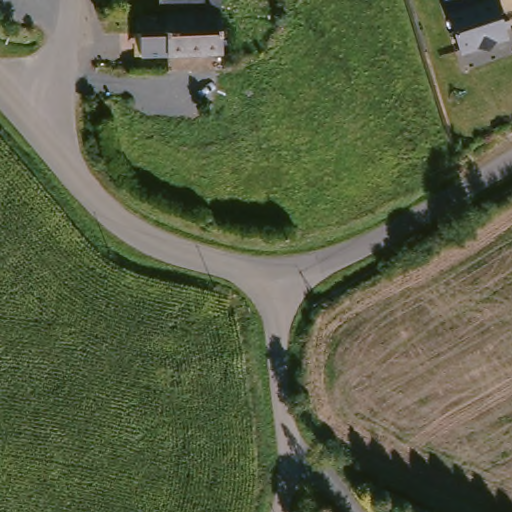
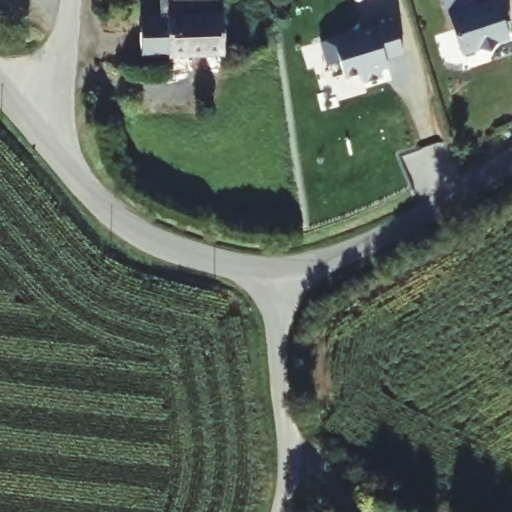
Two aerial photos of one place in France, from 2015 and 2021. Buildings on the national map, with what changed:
unchanged [(222,53),(170,56),(140,57),(137,16),(165,15),(164,0),(217,0),(222,53)]
unchanged [(476,4),(447,12),(444,0),(475,0),(476,4)]
unchanged [(497,3),(509,38),(496,42),(489,50),(478,47),(460,51),(449,16),(497,3)]
new [(361,73),(344,78),(340,60),(327,65),(320,43),(335,39),(375,26),(376,28),(394,22),(404,55),(385,61),(388,68),(380,71),(382,78),(364,83),(361,73)]

